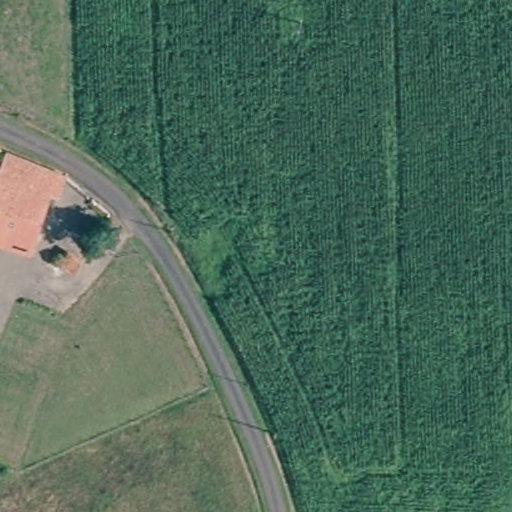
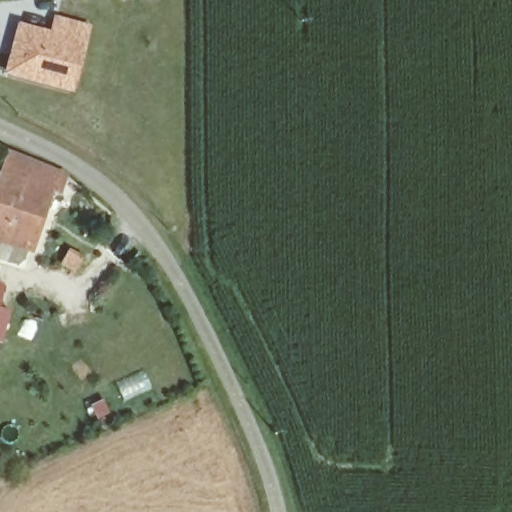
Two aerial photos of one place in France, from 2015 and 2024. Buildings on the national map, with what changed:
new [(17,21),(48,29),(53,14),(92,24),(73,93),(2,73),(17,21)]
unchanged [(1,186),(0,186),(0,180),(12,144),(67,180),(61,198),(50,195),(31,251),(0,240),(0,189),(1,186)]
unchanged [(74,283),(60,279),(66,261),(80,266),(74,283)]

